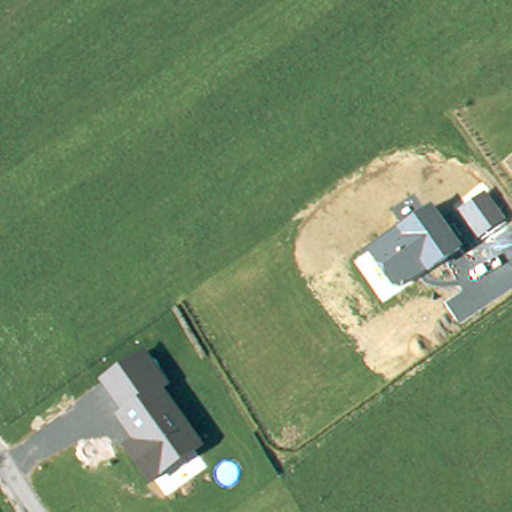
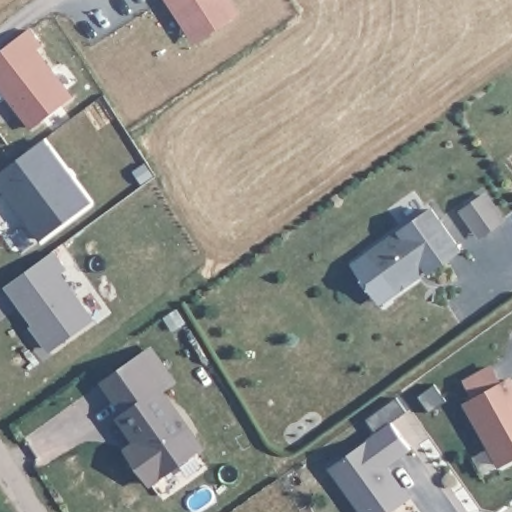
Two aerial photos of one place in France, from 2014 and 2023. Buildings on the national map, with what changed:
new [(193,42),(165,0),(233,0),(242,12),(193,42)]
new [(32,127),(0,86),(0,50),(29,29),(41,46),(35,50),(73,97),(32,127)]
new [(93,202),(41,242),(0,187),(0,172),(46,138),(93,202)]
unchanged [(507,219),(479,239),(459,211),(485,192),(507,219)]
unchanged [(369,252),(399,232),(432,208),(462,249),(431,272),(401,289),(392,287),(369,252)]
new [(61,272),(95,318),(49,353),(29,327),(32,325),(5,286),(56,250),(68,268),(61,272)]
unchanged [(145,351),(169,387),(164,390),(204,448),(149,487),(122,447),(132,441),(115,416),(120,413),(99,382),(145,351)]
new [(502,381),(512,376),(512,377),(512,459),(499,466),(464,402),(472,397),(462,379),(492,362),(502,381)]
new [(412,449),(388,467),(411,497),(391,512),(360,512),(329,467),(391,421),(412,449)]

